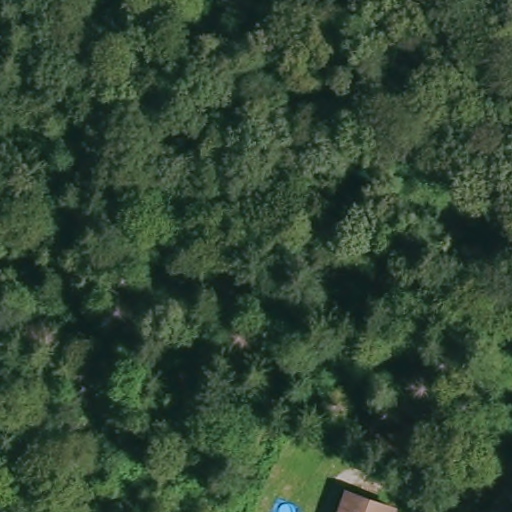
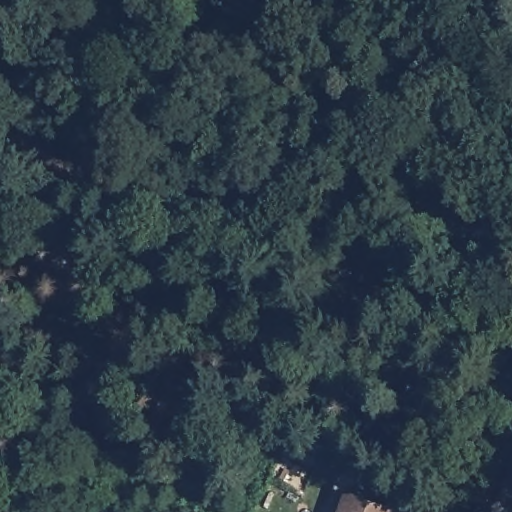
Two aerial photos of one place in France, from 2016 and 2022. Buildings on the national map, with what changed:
unchanged [(391,512),(339,512),(349,484),(395,502),(391,512)]

